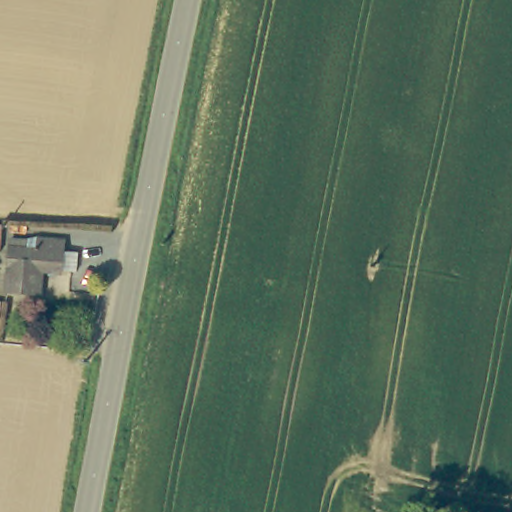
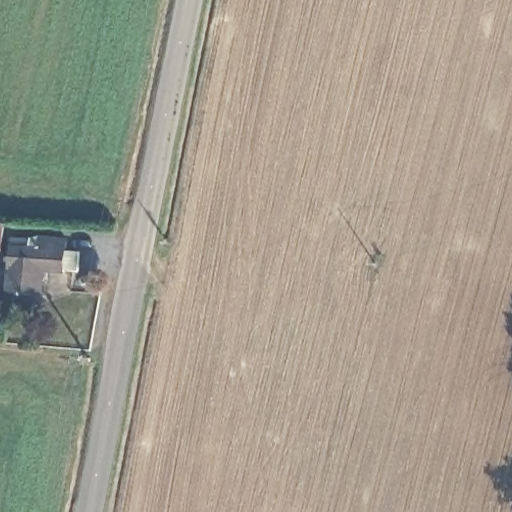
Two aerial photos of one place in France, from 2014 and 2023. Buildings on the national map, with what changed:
unchanged [(4,219),(2,251),(0,251),(0,218),(4,219)]
unchanged [(24,237),(23,242),(35,242),(34,237),(60,239),(60,244),(69,245),(68,260),(60,259),(59,270),(37,269),(36,290),(5,288),(7,236),(24,237)]

